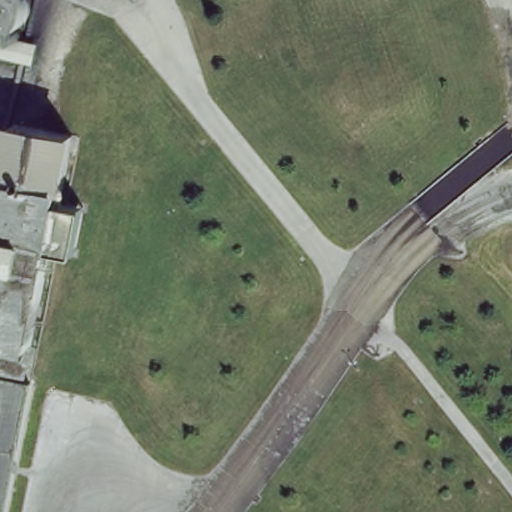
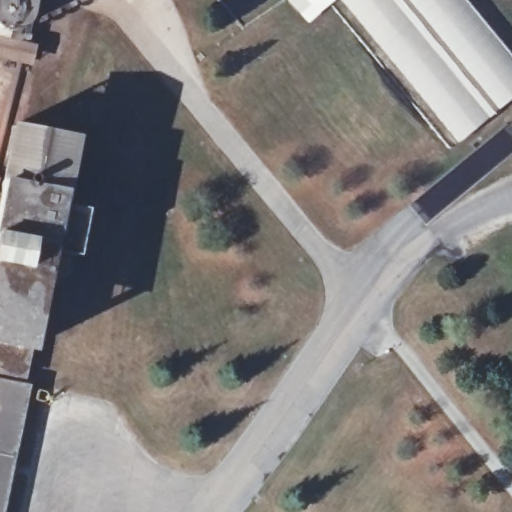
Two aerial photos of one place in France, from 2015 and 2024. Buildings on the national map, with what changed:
unchanged [(0,30),(0,0),(30,0),(28,7),(27,16),(23,22),(15,27),(9,30),(0,30)]
new [(459,141),(343,0),(468,0),(512,53),(512,98),(459,141)]
unchanged [(31,347),(30,353),(23,378),(33,382),(5,512),(0,512),(0,151),(7,118),(17,116),(97,128),(57,312),(38,317),(31,347)]

